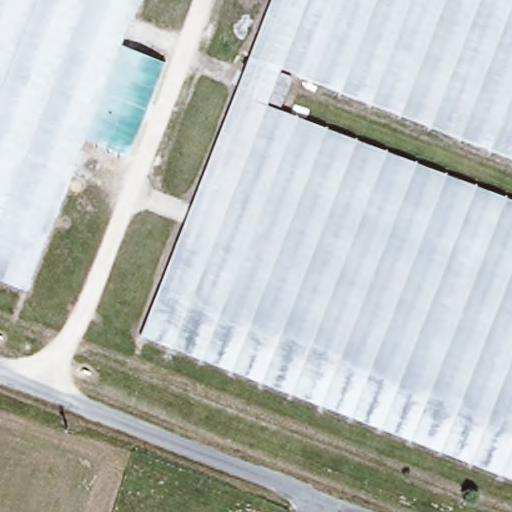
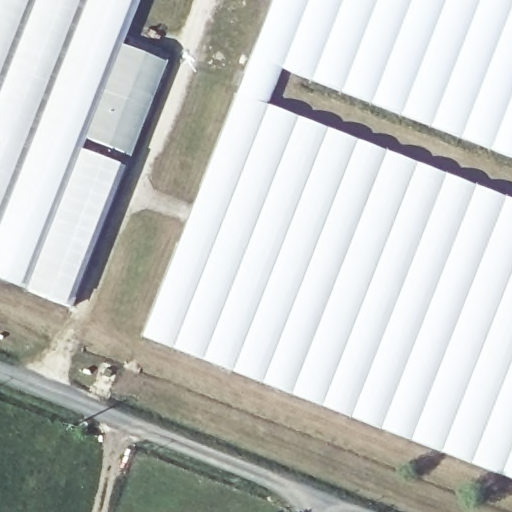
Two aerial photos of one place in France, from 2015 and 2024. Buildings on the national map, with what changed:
unchanged [(123,48),(86,142),(27,293),(0,283),(0,0),(142,0),(123,48)]
unchanged [(282,73),(271,103),(512,199),(512,487),(140,339),(275,0),(512,0),(512,165),(282,73)]
unchanged [(169,66),(131,159),(86,142),(123,48),(169,66)]
new [(71,308),(28,291),(83,151),(126,167),(71,308)]

